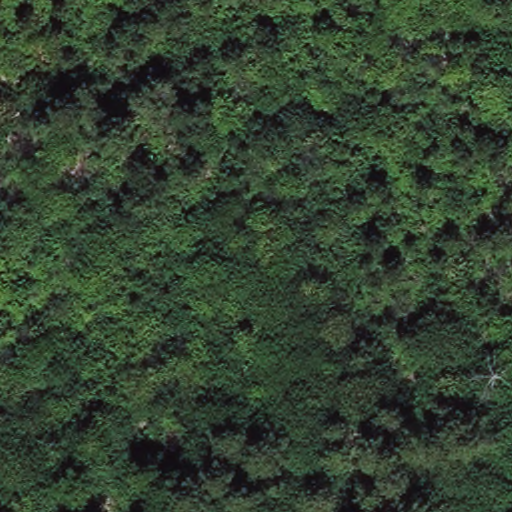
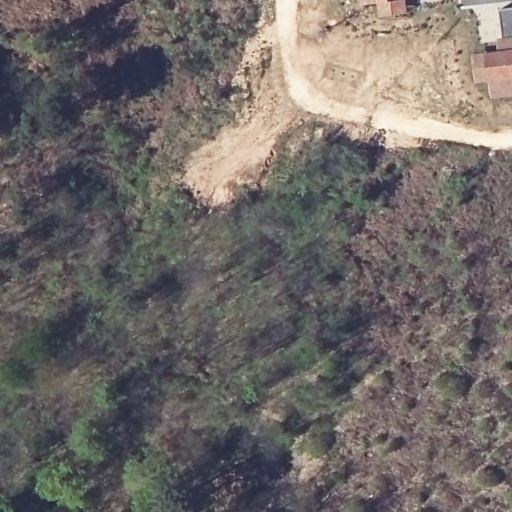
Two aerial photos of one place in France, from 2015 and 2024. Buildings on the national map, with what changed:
new [(410,14),(380,17),(377,3),(362,5),(361,0),(408,0),(410,14)]
new [(512,7),(512,35),(503,37),(500,9),(512,7)]
new [(499,49),(497,38),(503,37),(512,35),(512,95),(493,98),(491,81),(476,83),(472,53),(499,49)]

